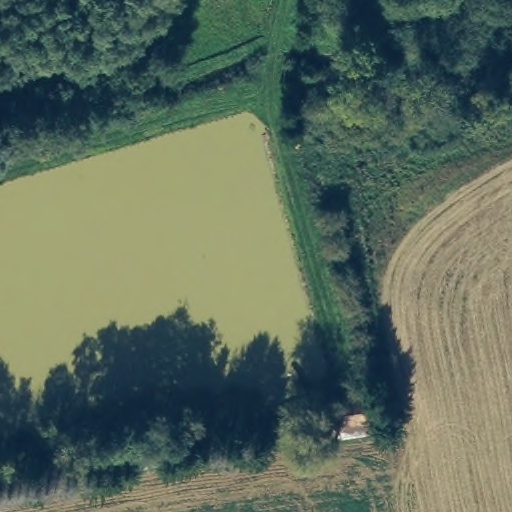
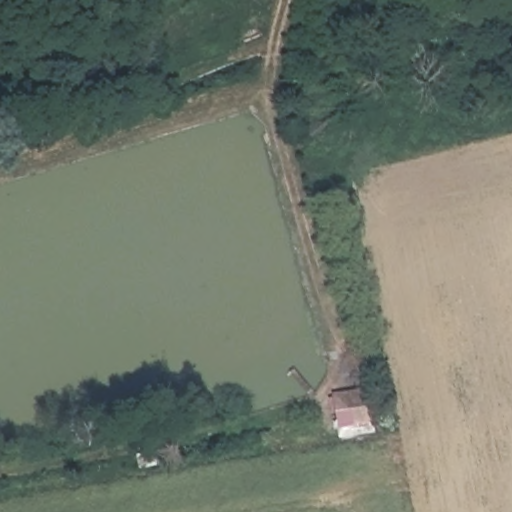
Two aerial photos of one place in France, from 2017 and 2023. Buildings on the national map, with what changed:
unchanged [(367,382),(377,419),(335,426),(329,390),(367,382)]

